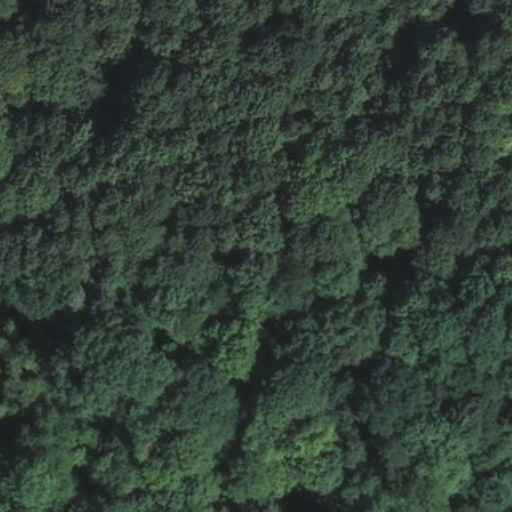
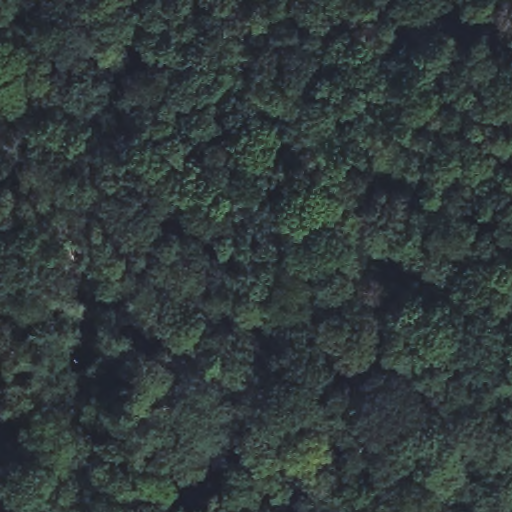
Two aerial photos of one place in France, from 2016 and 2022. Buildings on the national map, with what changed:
[]

